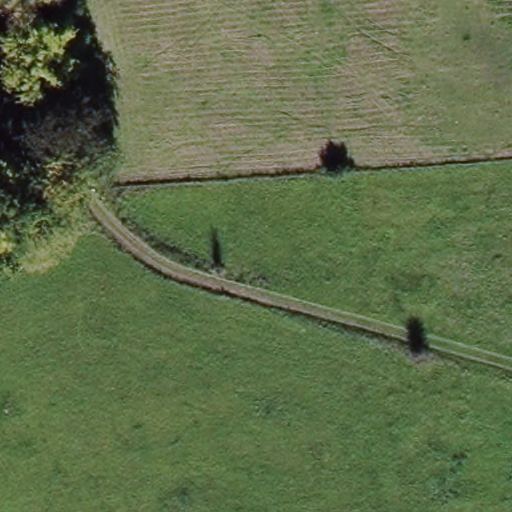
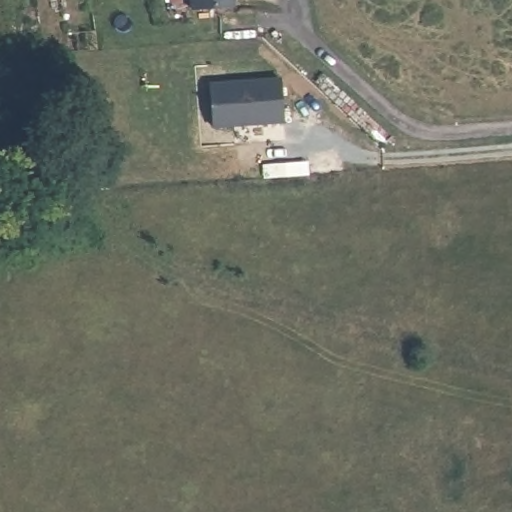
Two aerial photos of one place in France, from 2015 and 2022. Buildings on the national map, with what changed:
new [(194,12),(192,0),(235,0),(236,9),(194,12)]
new [(283,80),(286,124),(215,129),(212,85),(283,80)]

